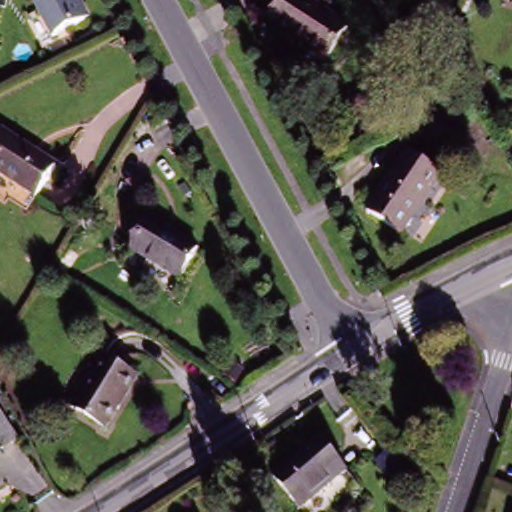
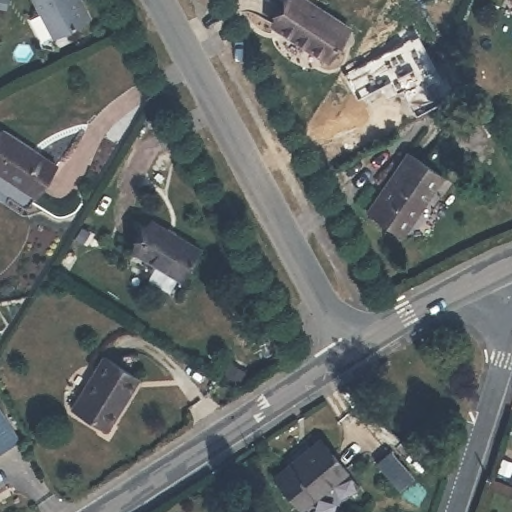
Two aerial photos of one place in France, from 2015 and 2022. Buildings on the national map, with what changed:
unchanged [(88,14),(57,31),(41,0),(88,0),(91,6),(88,14)]
unchanged [(328,66),(275,30),(294,0),(298,0),(350,34),(328,66)]
unchanged [(55,171),(35,202),(0,180),(0,139),(2,136),(55,171)]
unchanged [(420,196),(396,229),(366,208),(408,150),(440,174),(422,199),(420,196)]
unchanged [(131,250),(148,222),(197,251),(180,279),(131,250)]
unchanged [(75,415),(104,364),(133,381),(138,383),(123,411),(110,434),(75,415)]
unchanged [(0,456),(0,405),(23,442),(0,456)]
unchanged [(396,472),(382,482),(365,458),(378,448),(396,472)]
unchanged [(340,485),(305,512),(286,512),(267,489),(315,452),(340,485)]

